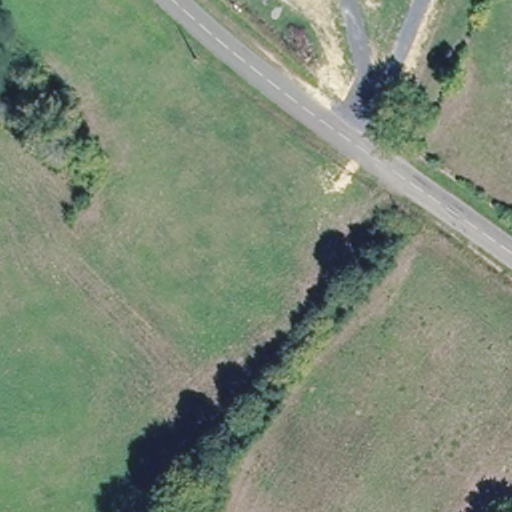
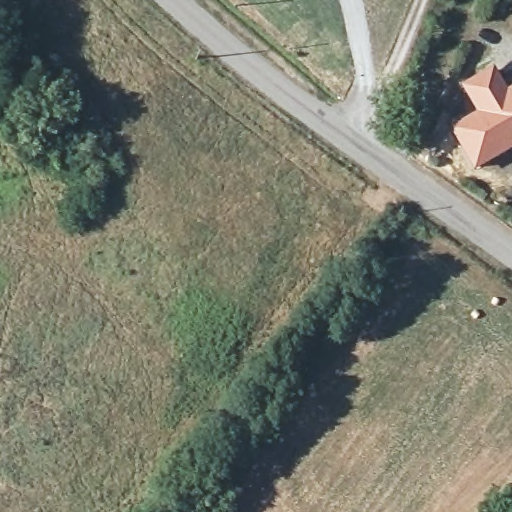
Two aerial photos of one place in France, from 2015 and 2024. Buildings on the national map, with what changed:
new [(474,111),(458,83),(492,63),(506,88),(512,85),(512,149),(472,171),(448,128),(474,111)]

